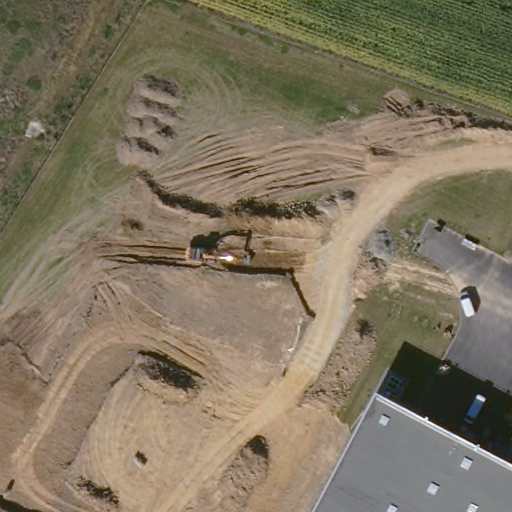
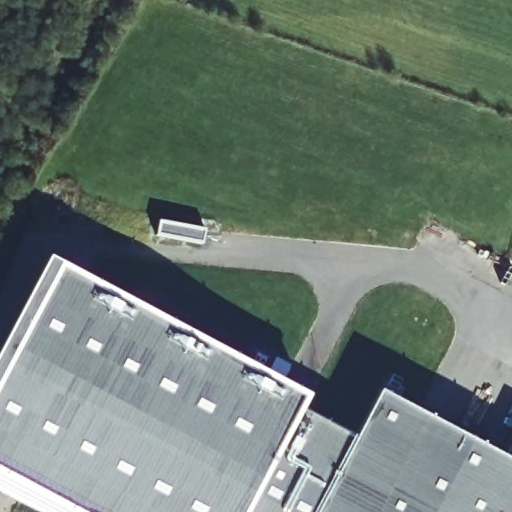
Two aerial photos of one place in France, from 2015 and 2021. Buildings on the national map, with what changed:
new [(275,356),(291,364),(282,381),(309,396),(301,409),(354,436),(315,512),(76,512),(0,472),(0,346),(47,256),(265,373),(275,356)]
unchanged [(315,512),(378,391),(501,455),(512,438),(512,512),(315,512)]

